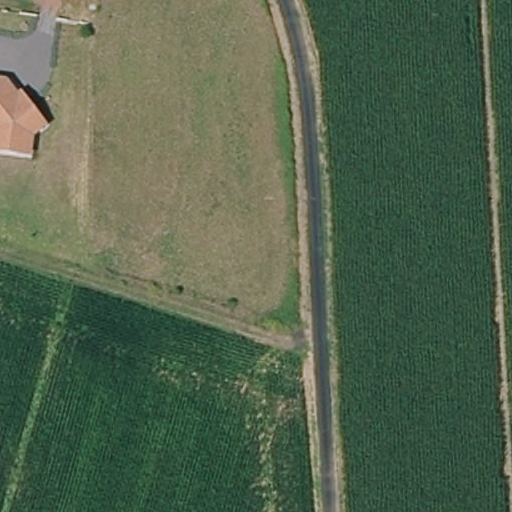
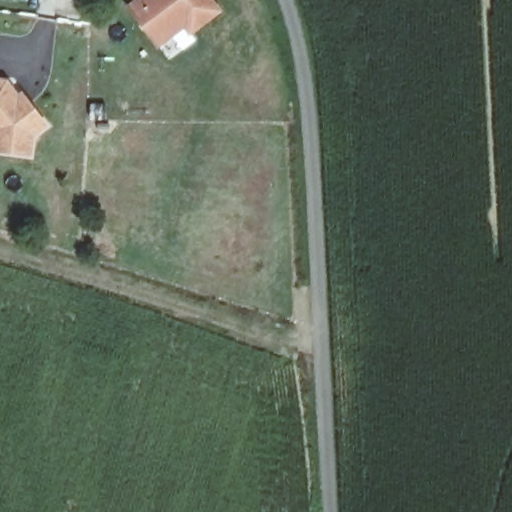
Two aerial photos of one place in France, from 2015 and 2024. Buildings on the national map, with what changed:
new [(132,9),(143,0),(212,0),(216,5),(219,9),(208,18),(192,31),(186,24),(162,45),(152,33),(132,9)]
unchanged [(17,99),(22,96),(43,128),(28,135),(24,155),(0,150),(0,87),(7,81),(17,99)]

